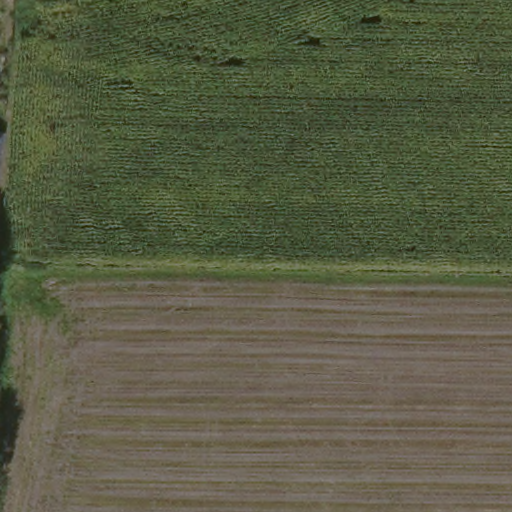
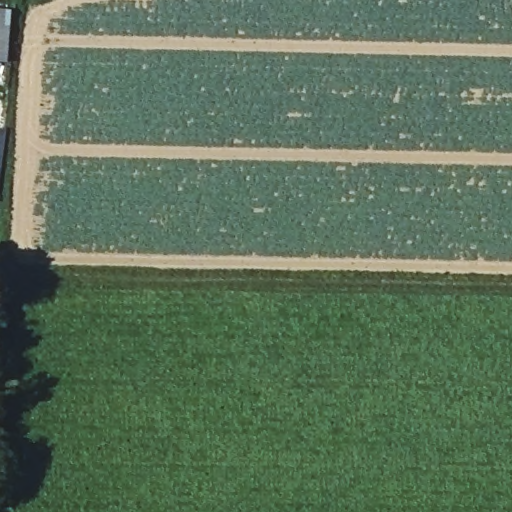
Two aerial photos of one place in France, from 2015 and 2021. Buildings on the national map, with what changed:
new [(9,13),(6,64),(0,64),(0,12),(9,13)]
unchanged [(7,133),(3,164),(3,165),(0,187),(0,133),(7,133)]

